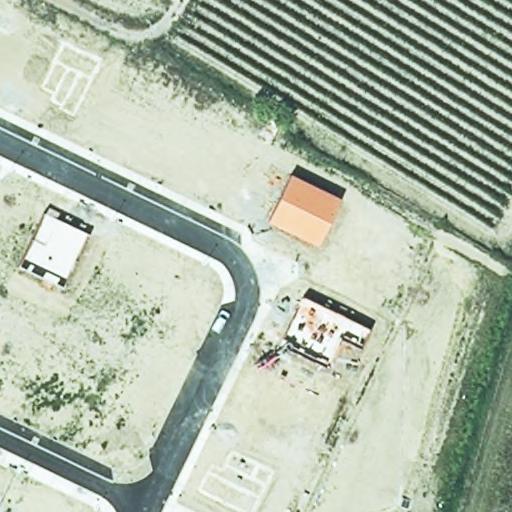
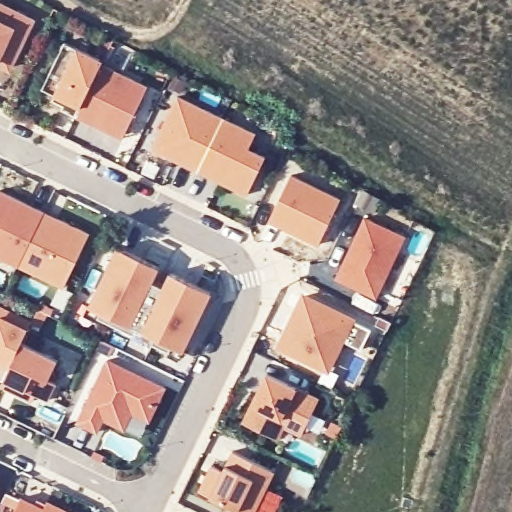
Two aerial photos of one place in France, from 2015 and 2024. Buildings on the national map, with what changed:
new [(7,71),(0,67),(0,1),(33,18),(7,71)]
new [(75,114),(47,101),(51,94),(52,91),(41,87),(64,41),(77,48),(100,59),(99,62),(145,85),(120,139),(73,117),(75,114)]
new [(150,149),(176,95),(220,116),(195,170),(150,149)]
new [(220,116),(253,132),(246,147),(264,155),(245,195),(195,170),(220,116)]
unchanged [(265,221),(287,174),(340,199),(317,248),(265,221)]
new [(16,266),(0,259),(0,191),(41,209),(40,210),(16,266)]
new [(16,266),(40,210),(87,232),(62,287),(16,266)]
new [(333,278),(362,216),(404,235),(375,297),(333,278)]
new [(139,331),(135,328),(132,333),(98,316),(100,313),(85,305),(115,246),(157,266),(151,280),(160,286),(139,331)]
new [(139,331),(160,286),(167,272),(210,292),(181,350),(139,331)]
new [(280,338),(301,295),(368,327),(359,348),(340,339),(325,367),(287,350),(277,345),(280,338)]
new [(0,380),(0,305),(6,307),(3,316),(25,327),(19,341),(2,381),(0,380)]
new [(54,383),(47,400),(34,394),(30,400),(0,388),(0,384),(2,381),(19,341),(55,359),(46,379),(54,383)]
new [(129,414),(121,430),(102,420),(95,433),(73,422),(105,358),(165,387),(147,422),(129,414)]
new [(298,435),(282,427),(277,439),(240,423),(250,403),(263,372),(295,386),(316,397),(298,435)]
new [(235,509),(208,496),(197,490),(210,464),(220,468),(223,463),(225,465),(230,450),(273,470),(265,487),(280,494),(273,512),(243,512),(235,509)]
new [(13,508),(0,503),(0,498),(2,490),(18,496),(41,507),(45,500),(72,512),(12,512),(13,508)]

